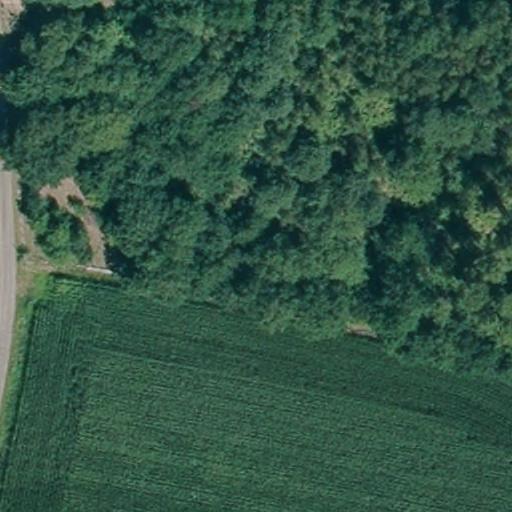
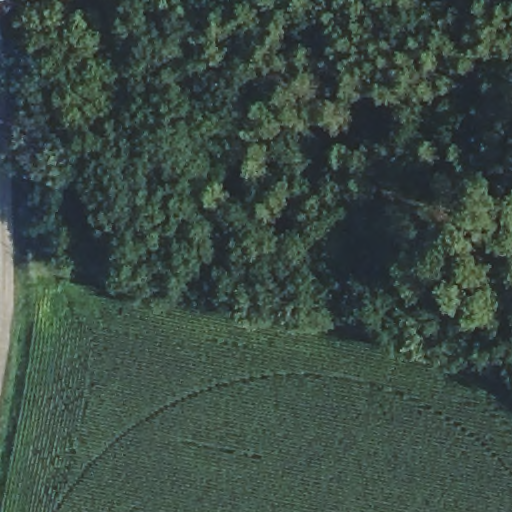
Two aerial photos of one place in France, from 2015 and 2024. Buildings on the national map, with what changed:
[]

